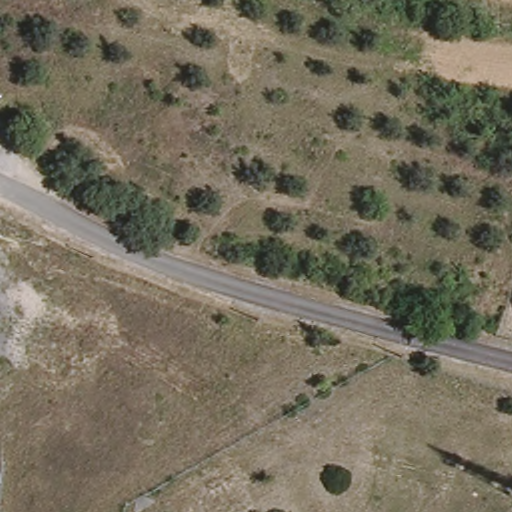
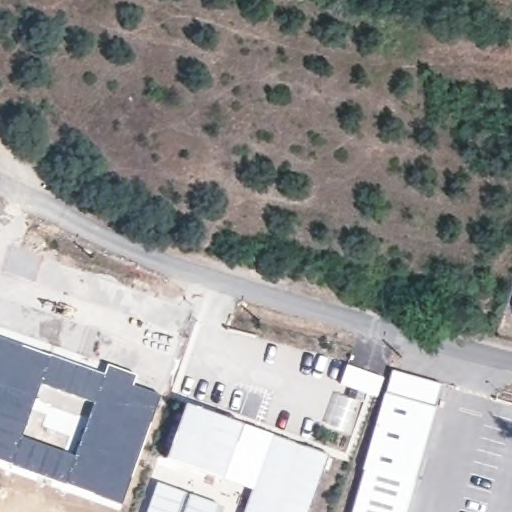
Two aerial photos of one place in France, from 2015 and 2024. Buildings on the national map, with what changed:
new [(102,371),(106,362),(136,373),(133,383),(161,394),(120,505),(0,461),(0,334),(102,371)]
new [(346,363),(383,376),(376,397),(338,383),(346,363)]
new [(440,382),(435,403),(386,392),(393,371),(440,382)]
new [(362,468),(385,391),(386,392),(435,403),(435,406),(436,406),(414,481),(365,465),(364,468),(362,468)]
new [(328,455),(308,512),(245,512),(253,489),(224,478),(166,458),(185,403),(243,423),(328,455)]
new [(406,512),(352,512),(365,465),(414,481),(406,512)]
new [(216,512),(147,512),(157,482),(219,503),(216,512)]
new [(512,512),(511,512),(512,509),(512,512)]

